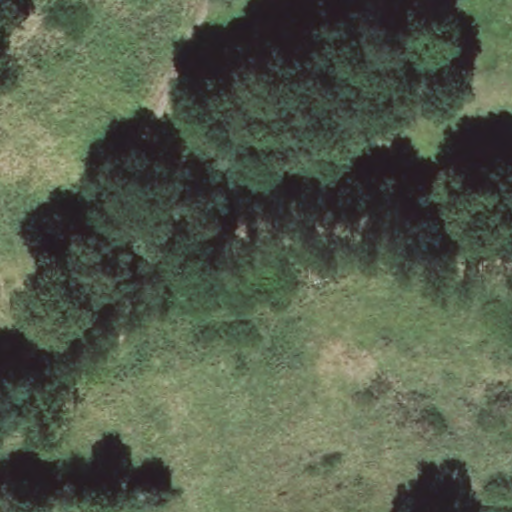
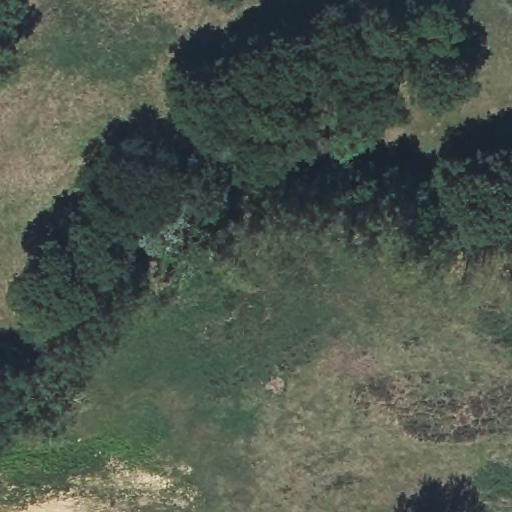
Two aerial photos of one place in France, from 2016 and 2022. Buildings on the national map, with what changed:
unchanged [(324,262),(323,281),(309,279),(312,261),(324,262)]

